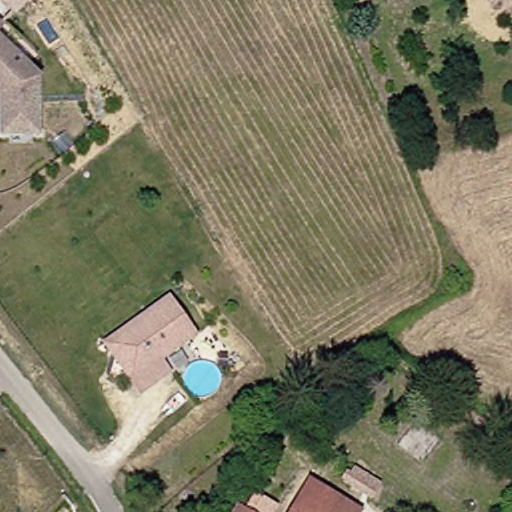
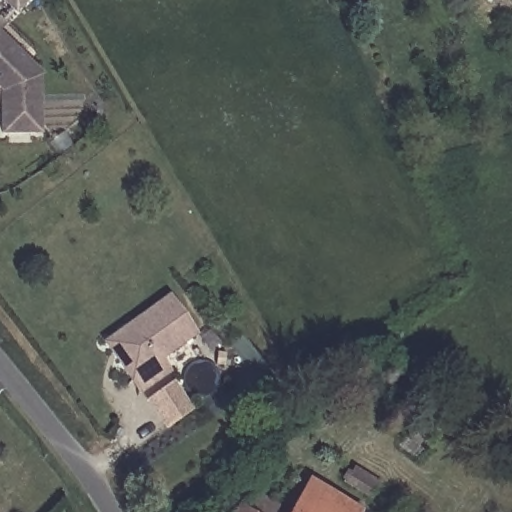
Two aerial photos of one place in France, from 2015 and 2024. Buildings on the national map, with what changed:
unchanged [(2,0),(24,0),(13,11),(2,0)]
unchanged [(34,75),(35,132),(0,131),(0,39),(34,75)]
unchanged [(146,311),(175,291),(200,327),(164,351),(174,366),(144,386),(134,371),(109,335),(146,311)]
new [(176,382),(195,411),(170,428),(151,399),(176,382)]
unchanged [(366,507),(364,512),(293,512),(312,477),(366,507)]
unchanged [(379,503),(370,499),(374,492),(382,497),(379,503)]
unchanged [(277,509),(276,512),(250,512),(258,497),(277,509)]
unchanged [(242,512),(244,508),(250,512),(242,512)]

